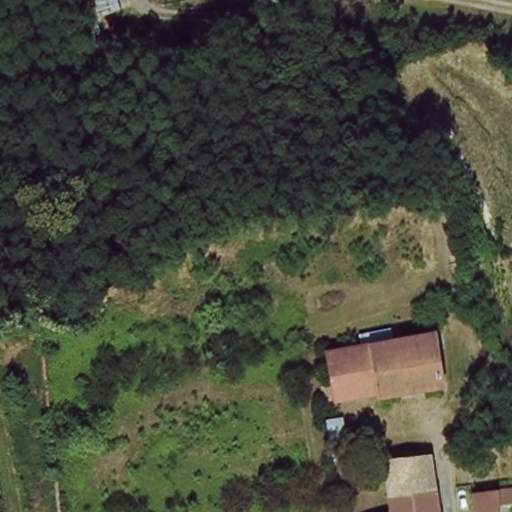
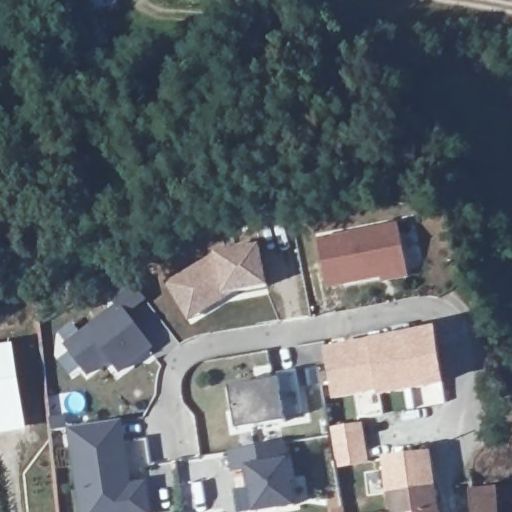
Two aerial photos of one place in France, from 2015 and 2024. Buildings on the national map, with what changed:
unchanged [(119,81),(123,92),(105,97),(102,87),(119,81)]
new [(317,240),(398,226),(407,279),(379,285),(379,280),(325,288),(317,240)]
new [(260,247),(269,288),(223,297),(189,323),(166,285),(216,255),(260,247)]
new [(128,314),(154,349),(119,375),(110,363),(86,379),(64,348),(117,308),(108,298),(135,278),(150,297),(128,314)]
unchanged [(377,397),(377,395),(320,403),(318,385),(330,384),(326,347),(434,332),(441,389),(377,397)]
new [(14,356),(25,434),(0,437),(0,357),(14,356)]
new [(275,382),(278,375),(297,372),(304,416),(285,419),(286,424),(236,432),(229,389),(275,382)]
unchanged [(323,419),(336,417),(339,436),(325,435),(323,419)]
new [(121,421),(130,484),(147,482),(151,512),(78,512),(65,429),(121,421)]
new [(284,443),(283,462),(290,461),(297,510),(283,512),(252,512),(245,471),(231,473),(228,454),(284,443)]
unchanged [(387,461),(390,457),(432,452),(437,486),(433,487),(392,494),(387,461)]
unchanged [(329,468),(328,466),(341,466),(345,493),(332,494),(329,468)]
unchanged [(392,494),(433,487),(437,486),(439,512),(393,512),(392,494)]
unchanged [(497,512),(474,512),(472,494),(495,492),(497,503),(497,512)]

